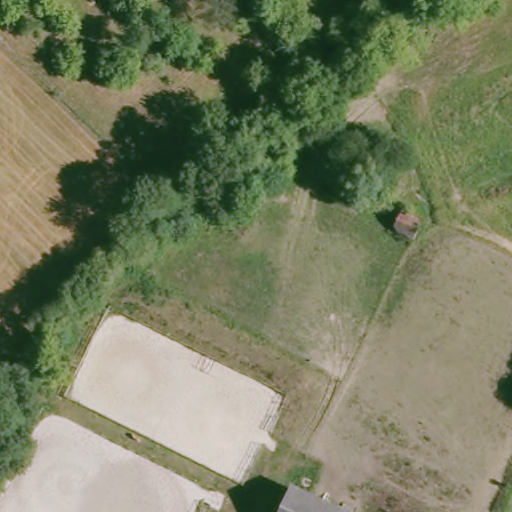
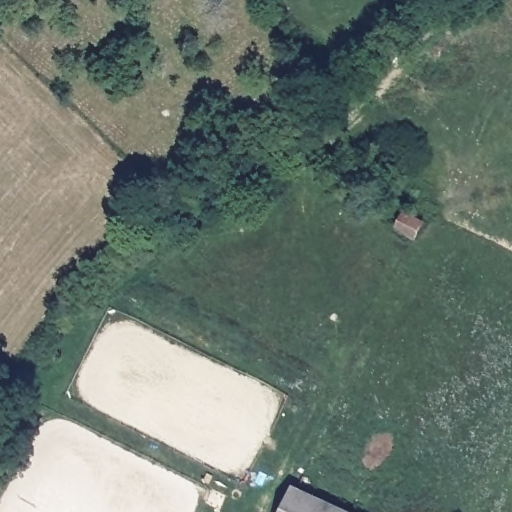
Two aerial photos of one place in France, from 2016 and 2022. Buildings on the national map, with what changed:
unchanged [(427,221),(418,237),(398,229),(407,211),(427,221)]
unchanged [(297,487),(349,512),(284,512),(297,487)]

